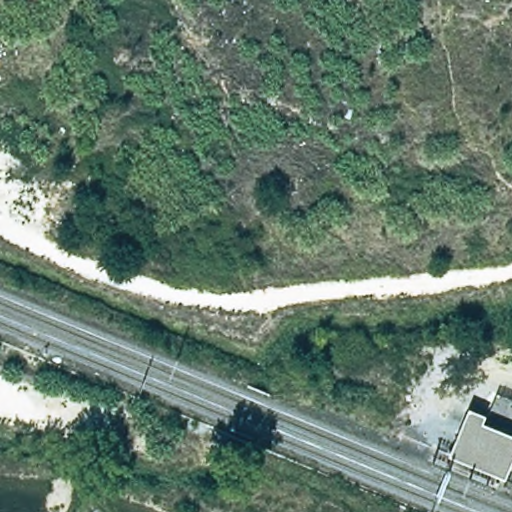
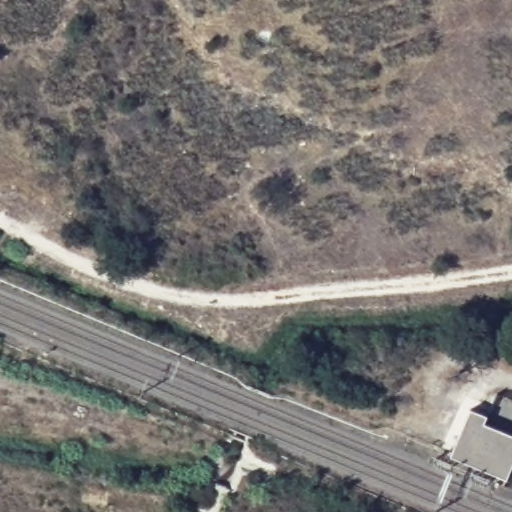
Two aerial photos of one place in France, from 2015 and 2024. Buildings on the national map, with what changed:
unchanged [(469,410),(483,415),(480,424),(512,437),(512,454),(502,478),(449,457),(469,410)]

